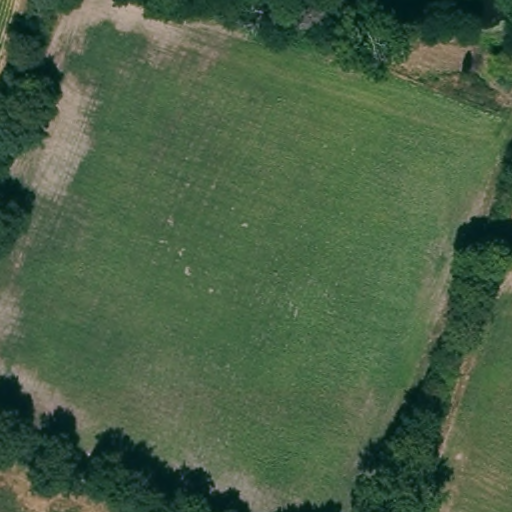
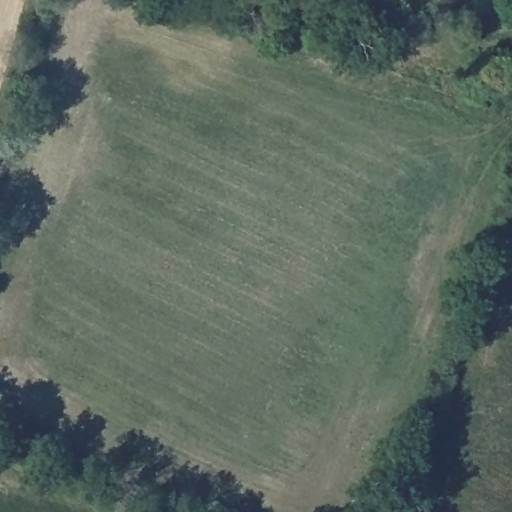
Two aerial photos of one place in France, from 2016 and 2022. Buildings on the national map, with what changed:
[]

